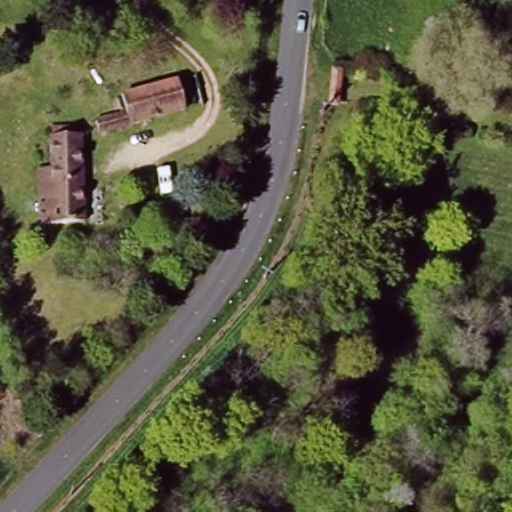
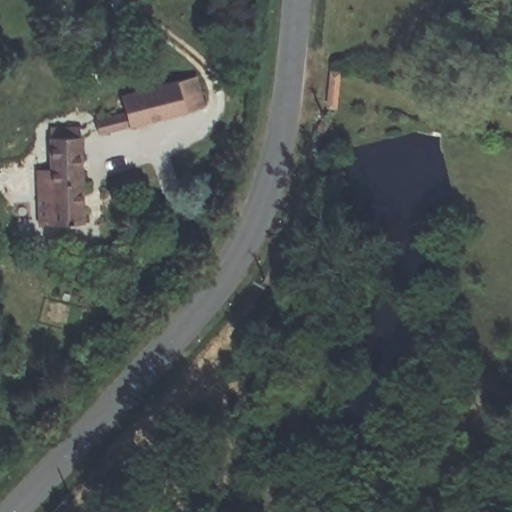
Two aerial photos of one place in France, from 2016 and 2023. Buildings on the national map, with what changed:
unchanged [(184,86),(191,110),(169,116),(97,139),(92,126),(115,117),(112,107),(162,92),(184,86)]
unchanged [(47,127),(59,125),(78,124),(83,227),(39,225),(40,190),(38,167),(49,165),(47,127)]

